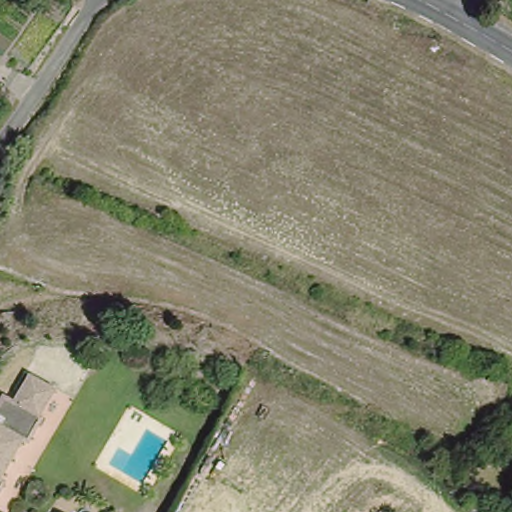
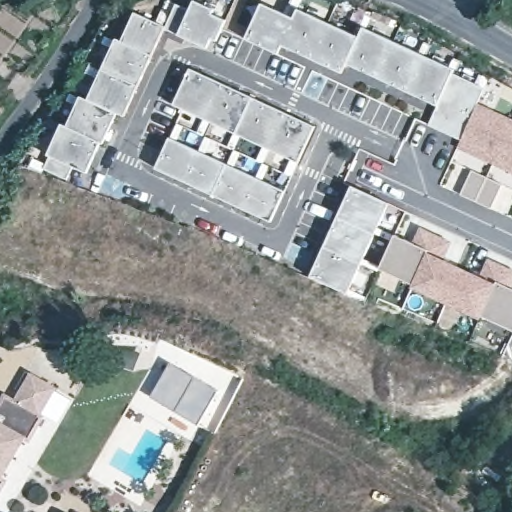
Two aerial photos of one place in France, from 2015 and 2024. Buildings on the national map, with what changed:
new [(170,24),(180,4),(193,11),(197,1),(217,11),(215,15),(230,21),(220,42),(214,40),(210,49),(168,29),(170,24)]
new [(271,2),(303,19),(307,10),(367,38),(371,29),(462,73),(460,76),(492,92),(485,107),(468,143),(436,127),(445,108),(355,65),(350,74),(290,45),(286,54),(253,37),(271,2)]
new [(50,154),(47,153),(62,122),(68,126),(83,96),(90,99),(119,39),(123,41),(131,22),(140,27),(147,12),(170,24),(168,29),(125,116),(118,112),(103,143),(101,142),(86,172),(73,166),(67,179),(43,167),(50,154)]
new [(283,176),(290,162),(268,152),(261,166),(255,162),(261,148),(240,138),(233,152),(226,149),(233,135),(212,124),(205,139),(198,135),(205,121),(173,106),(191,70),(315,130),(297,166),(291,180),(283,176)]
new [(468,143),(485,107),(512,120),(512,143),(500,167),(465,150),(468,143)]
new [(205,139),(212,142),(205,156),(227,166),(233,152),(240,156),(233,170),(255,180),(261,166),(269,170),(262,183),(284,194),(269,225),(155,169),(170,138),(176,124),(183,128),(176,142),(198,152),(205,139)]
new [(512,143),(512,173),(500,167),(512,143)]
new [(478,173),(509,189),(497,212),(466,197),(478,173)]
new [(357,187),(393,204),(350,294),(313,276),(357,187)]
new [(400,236),(418,245),(426,229),(441,237),(417,287),(383,271),(400,236)]
new [(417,287),(441,237),(457,244),(448,262),(467,270),(450,306),(416,290),(417,287)]
new [(467,270),(485,279),(493,262),(509,269),(485,319),(483,322),(450,306),(467,270)]
new [(509,269),(512,270),(512,332),(485,319),(509,269)]
unchanged [(17,397),(33,371),(57,385),(41,411),(45,413),(31,437),(25,433),(2,472),(8,476),(0,489),(0,403),(7,391),(17,397)]

